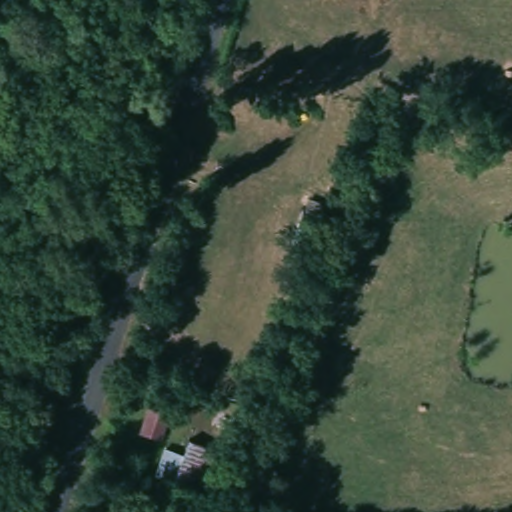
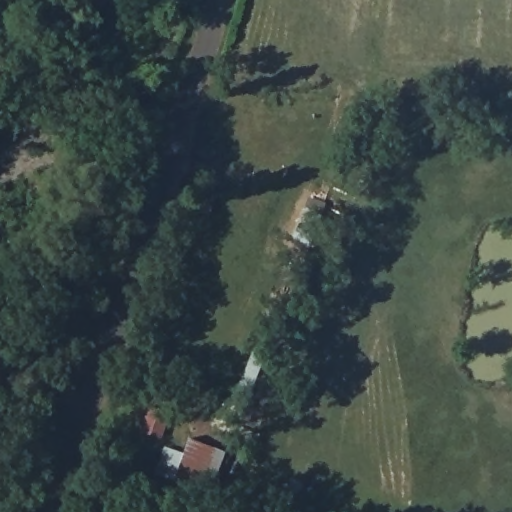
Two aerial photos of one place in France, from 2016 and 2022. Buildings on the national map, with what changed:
unchanged [(430,106),(382,105),(381,70),(430,71),(430,106)]
unchanged [(311,249),(287,241),(300,206),(325,218),(311,249)]
unchanged [(155,477),(162,447),(192,441),(238,459),(226,492),(155,477)]

